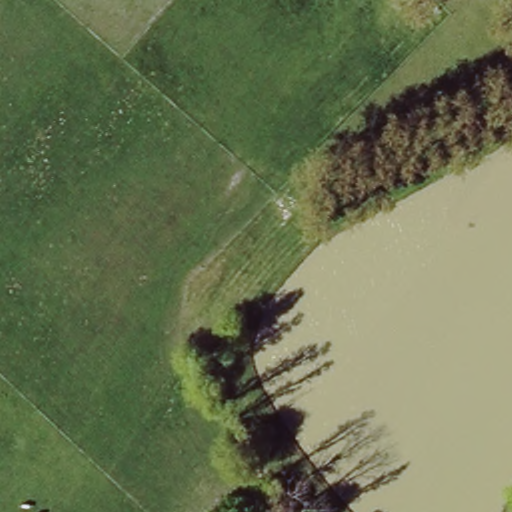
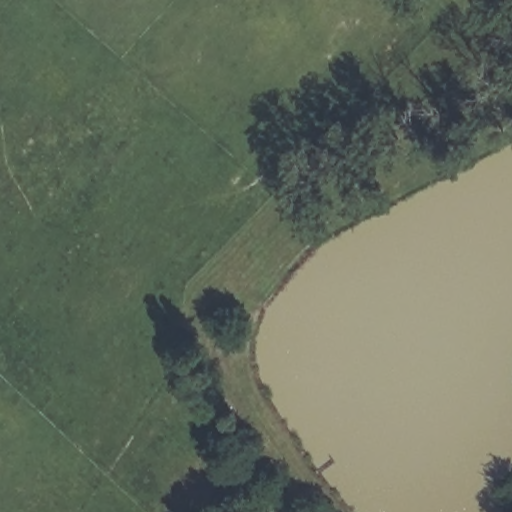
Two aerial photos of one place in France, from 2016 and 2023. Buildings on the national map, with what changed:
[]

